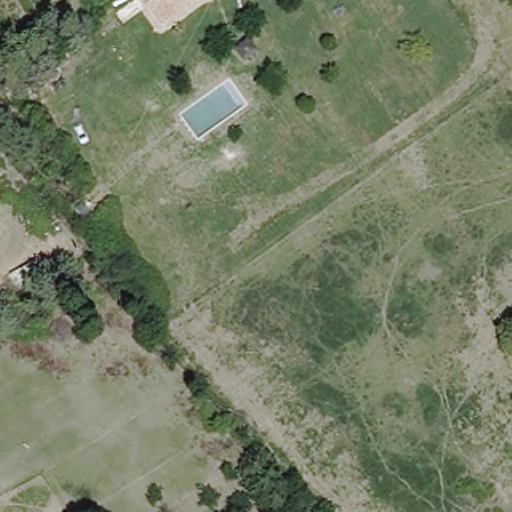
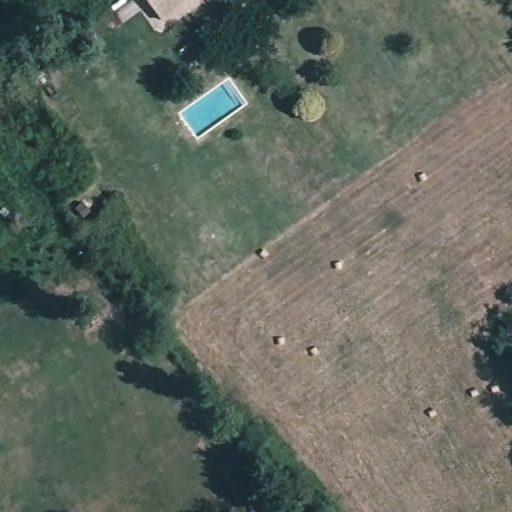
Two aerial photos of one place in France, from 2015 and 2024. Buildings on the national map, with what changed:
unchanged [(156,0),(173,0),(163,8),(156,0)]

